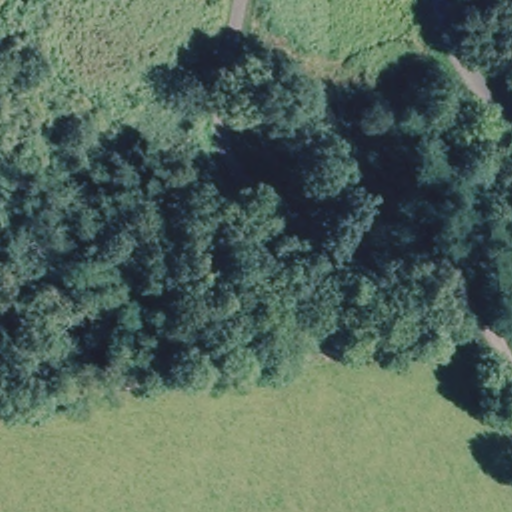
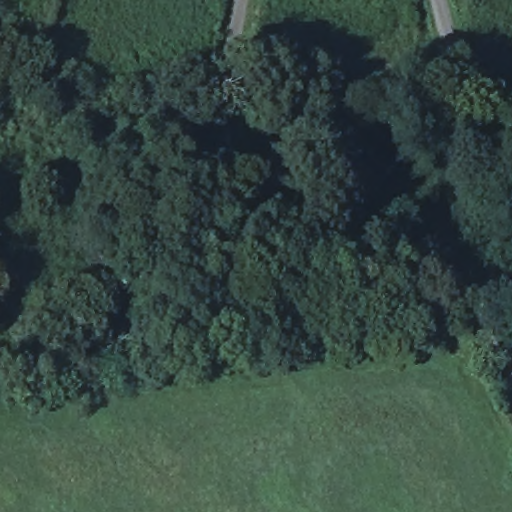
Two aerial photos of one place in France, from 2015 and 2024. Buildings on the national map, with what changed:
[]

